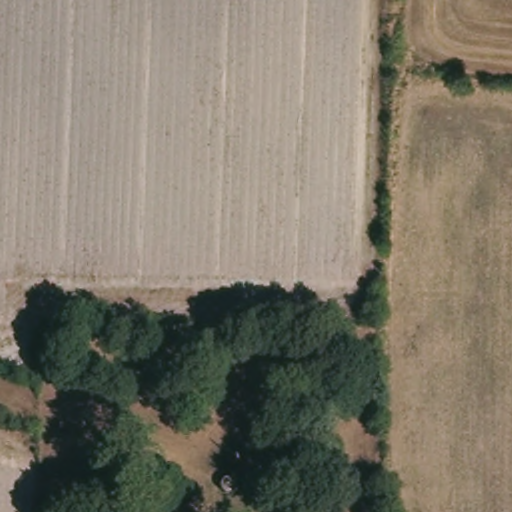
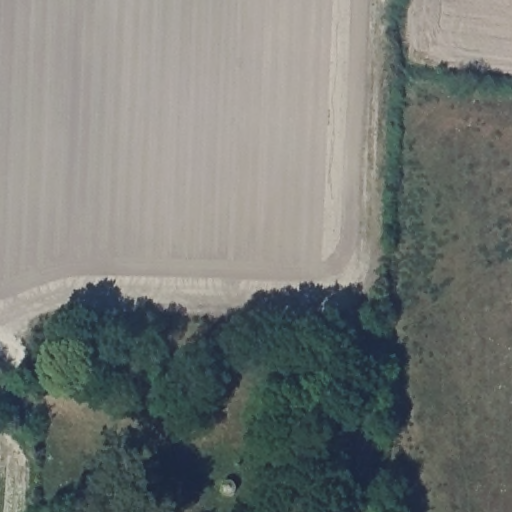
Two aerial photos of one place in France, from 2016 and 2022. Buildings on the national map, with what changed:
unchanged [(226,505),(223,509),(218,510),(214,507),(212,502),(213,498),(217,495),(221,495),(225,497),(225,500),(226,505)]

